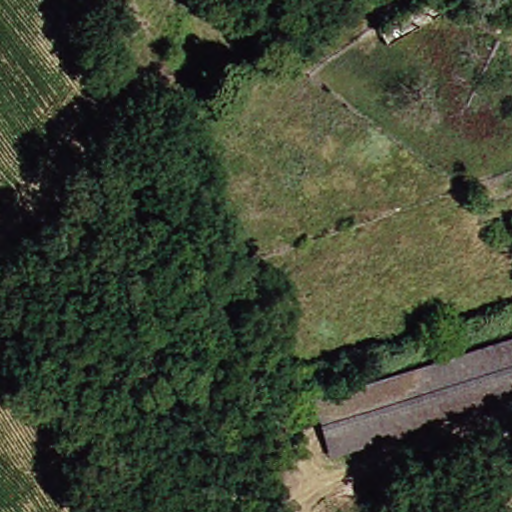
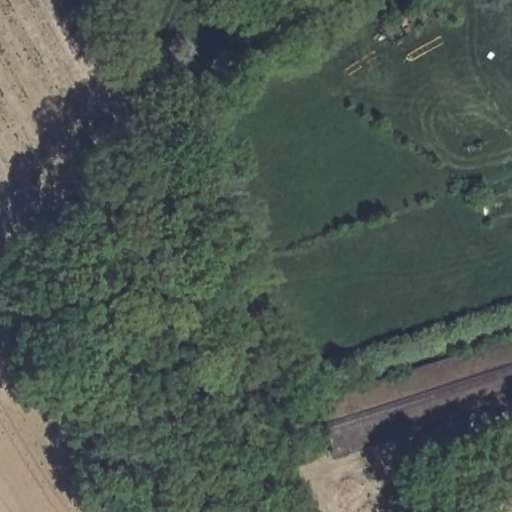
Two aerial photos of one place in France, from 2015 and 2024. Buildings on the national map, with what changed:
unchanged [(450,25),(388,62),(378,44),(438,8),(450,25)]
unchanged [(472,204),(512,191),(512,233),(487,242),(472,204)]
unchanged [(512,401),(364,452),(347,458),(332,407),(335,406),(512,343),(512,401)]

